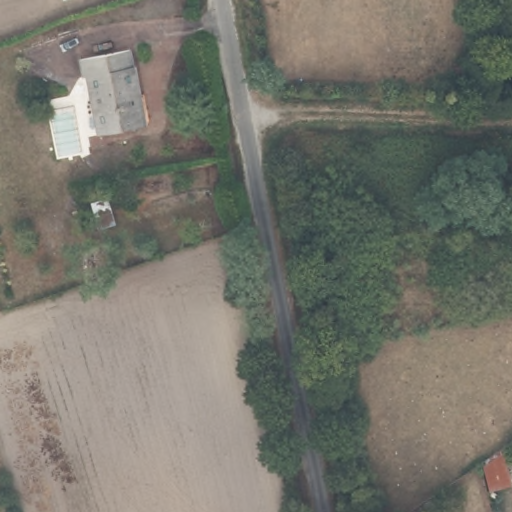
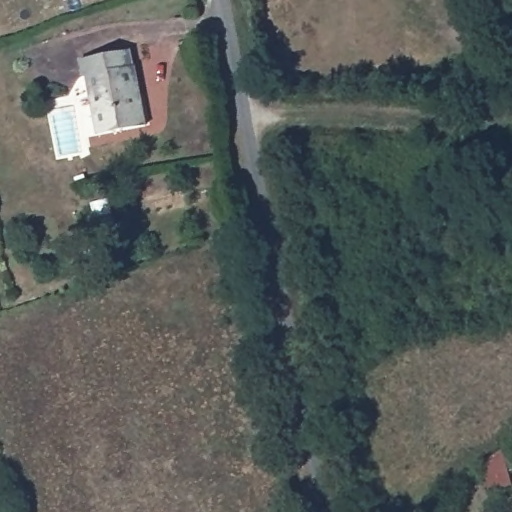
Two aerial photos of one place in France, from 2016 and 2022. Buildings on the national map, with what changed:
unchanged [(129,53),(131,69),(139,68),(145,99),(138,100),(143,129),(103,137),(95,95),(91,96),(87,78),(83,78),(80,62),(129,53)]

